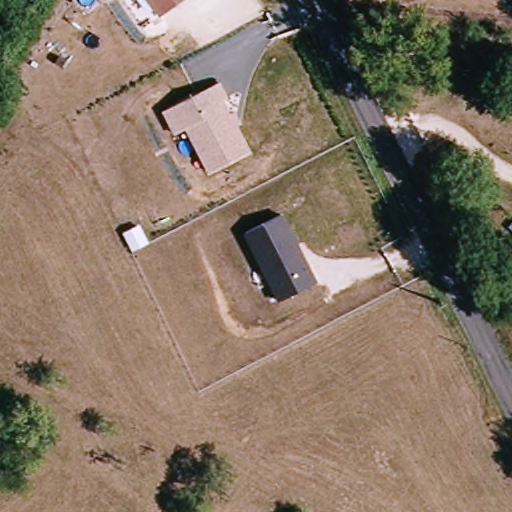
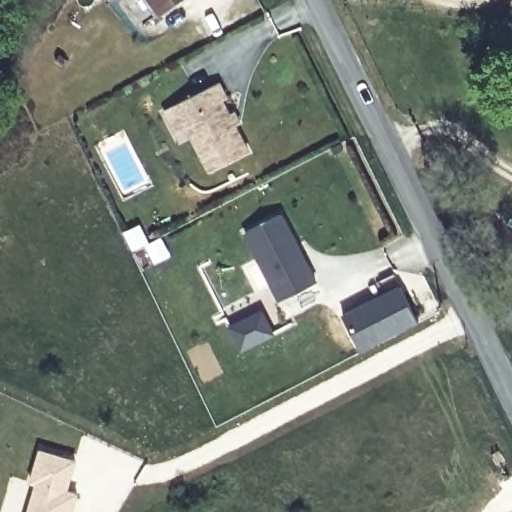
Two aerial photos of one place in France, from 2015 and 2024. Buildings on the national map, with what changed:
unchanged [(181,0),(162,14),(151,0),(181,0)]
unchanged [(188,129),(176,134),(163,110),(222,81),(231,98),(225,101),(251,151),(209,171),(188,129)]
unchanged [(245,232),(283,212),(320,280),(280,300),(245,232)]
new [(399,282),(418,323),(359,353),(339,314),(399,282)]
new [(262,311),(272,334),(241,350),(230,327),(262,311)]
new [(32,483),(27,481),(37,447),(76,459),(68,488),(79,492),(72,512),(24,512),(32,483)]

